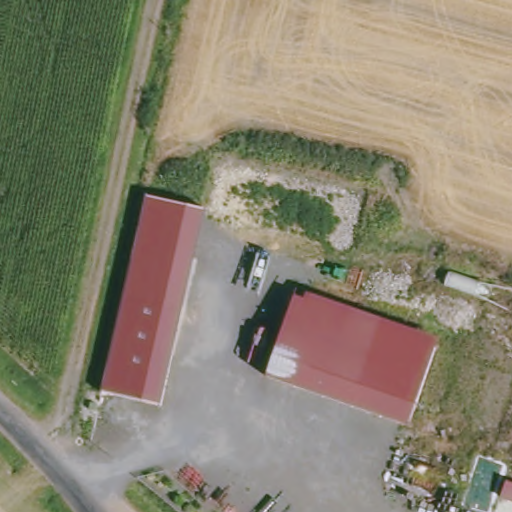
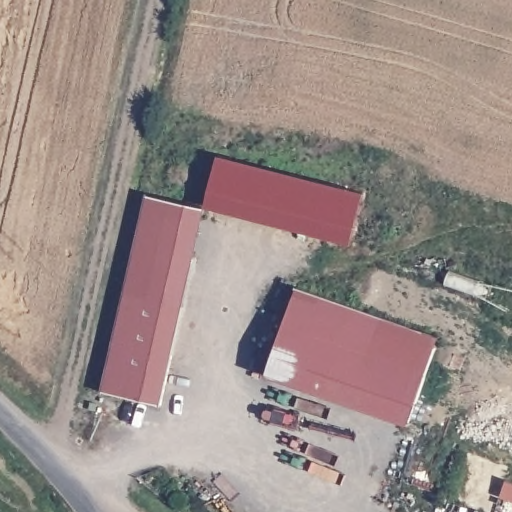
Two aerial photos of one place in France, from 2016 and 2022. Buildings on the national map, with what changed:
new [(348,242),(202,209),(213,160),(360,194),(348,242)]
unchanged [(148,198),(207,212),(162,407),(105,394),(148,198)]
unchanged [(270,374),(296,296),(438,346),(412,422),(270,374)]

